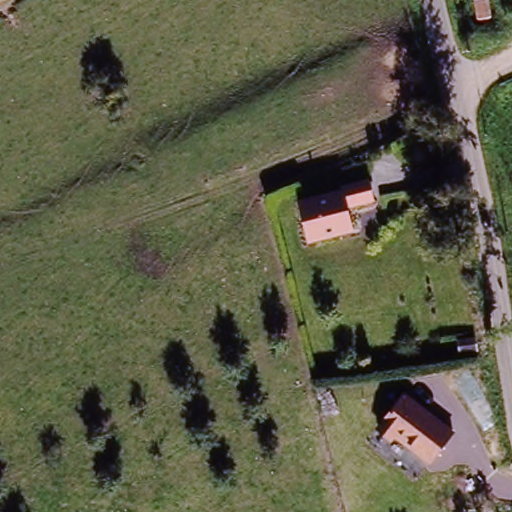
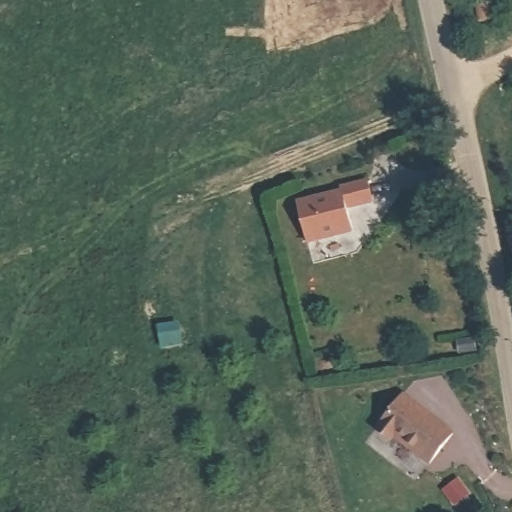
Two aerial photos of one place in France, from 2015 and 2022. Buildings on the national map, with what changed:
unchanged [(374,199),(351,205),(355,230),(311,239),(301,197),(370,179),(374,199)]
unchanged [(421,458),(387,436),(383,441),(369,431),(394,395),(441,427),(421,458)]

